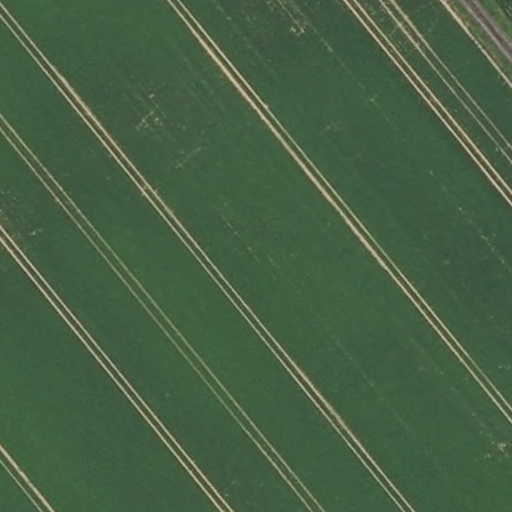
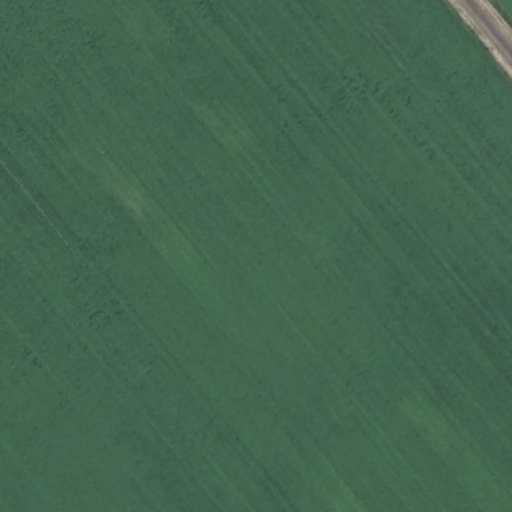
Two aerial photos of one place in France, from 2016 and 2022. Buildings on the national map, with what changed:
[]

